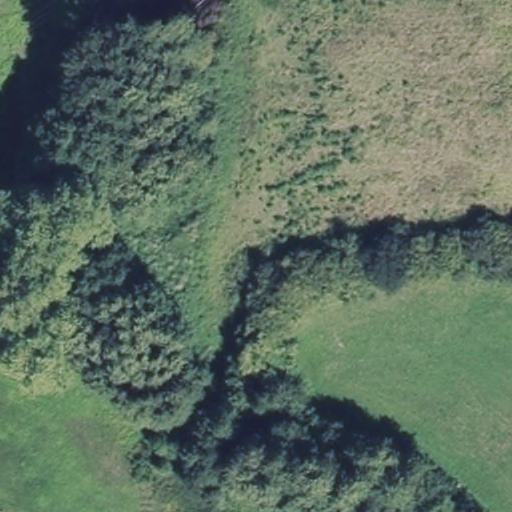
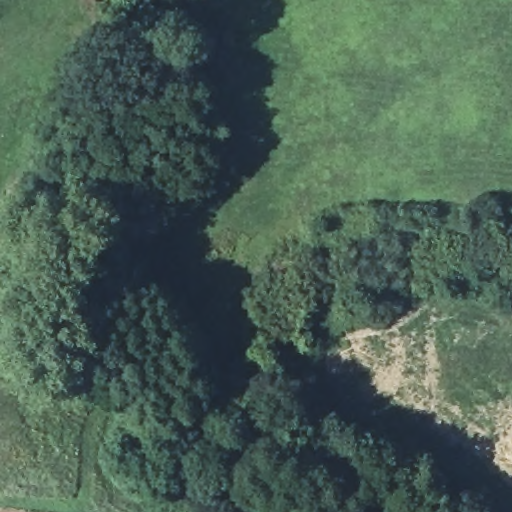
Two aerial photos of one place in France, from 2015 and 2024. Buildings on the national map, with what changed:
unchanged [(33,304),(55,305),(59,315),(55,324),(33,323),(33,304)]

